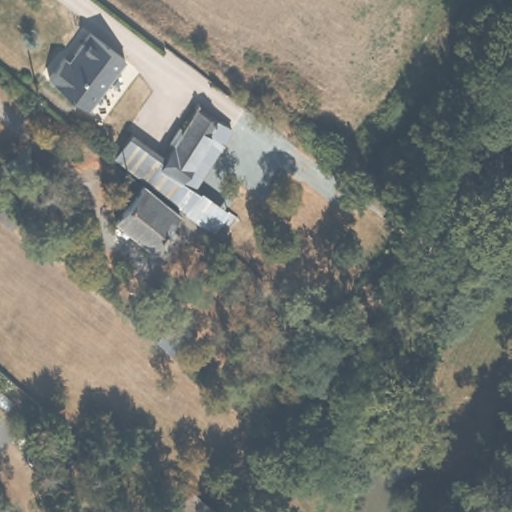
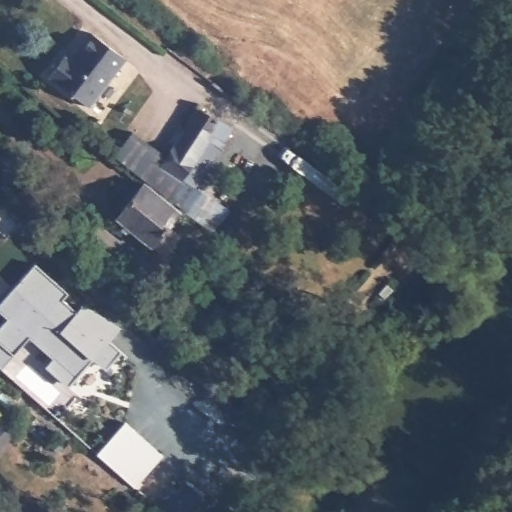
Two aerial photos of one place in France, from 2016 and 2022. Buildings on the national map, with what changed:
unchanged [(123,60),(88,106),(49,75),(63,56),(70,62),(77,55),(73,52),(89,33),(123,60)]
unchanged [(197,186),(230,209),(215,233),(178,208),(138,175),(114,156),(131,132),(163,155),(198,102),(234,126),(197,186)]
unchanged [(138,175),(178,208),(165,224),(179,234),(166,252),(111,216),(138,175)]
new [(91,360),(67,388),(43,368),(52,359),(28,337),(12,355),(0,344),(0,325),(5,319),(0,314),(0,303),(34,264),(67,293),(61,299),(76,312),(82,304),(120,327),(109,341),(121,352),(104,370),(91,360)]
new [(134,487),(96,453),(124,421),(162,456),(134,487)]
unchanged [(225,512),(166,512),(193,485),(225,512)]

